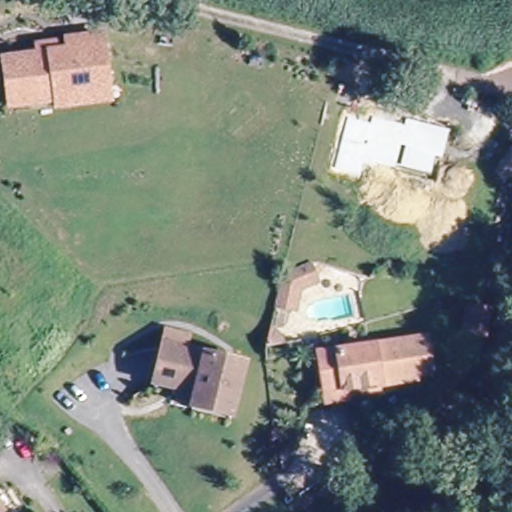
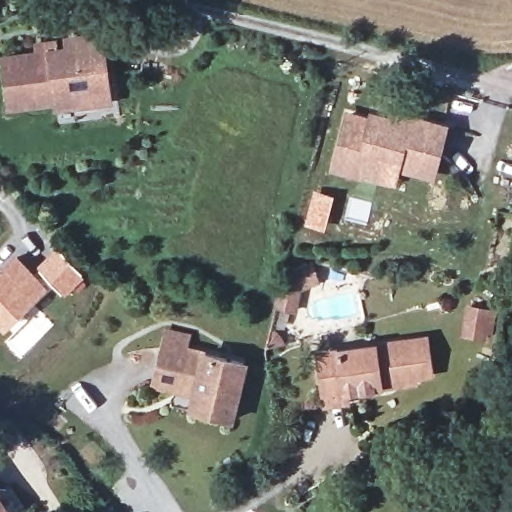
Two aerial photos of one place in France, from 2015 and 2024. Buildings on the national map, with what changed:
unchanged [(111,100),(10,114),(0,60),(0,57),(32,53),(31,40),(101,31),(111,100)]
new [(347,119),(370,124),(371,118),(404,126),(405,120),(441,129),(430,175),(395,167),(394,170),(362,162),(358,177),(334,171),(347,119)]
new [(47,284),(4,332),(0,328),(0,269),(16,254),(47,284)]
unchanged [(406,371),(407,377),(343,386),(345,397),(325,401),(319,355),(401,339),(420,335),(422,345),(426,369),(406,371)]
unchanged [(199,390),(152,380),(160,341),(241,358),(230,410),(210,406),(196,404),(199,390)]

